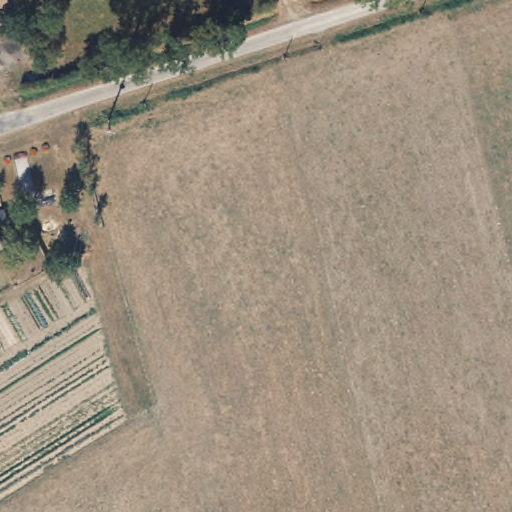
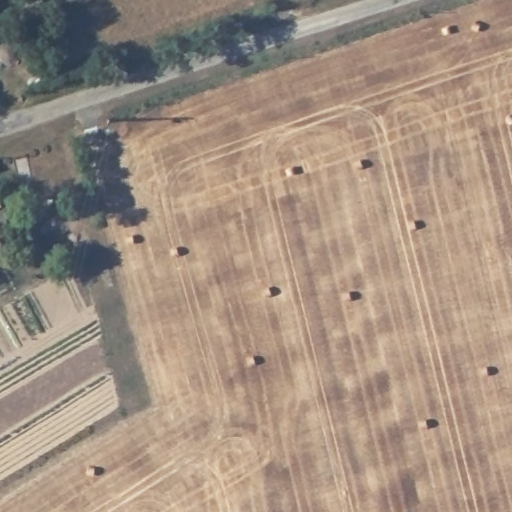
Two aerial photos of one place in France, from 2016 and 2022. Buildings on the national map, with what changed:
unchanged [(0,255),(0,236),(2,255),(0,255)]

